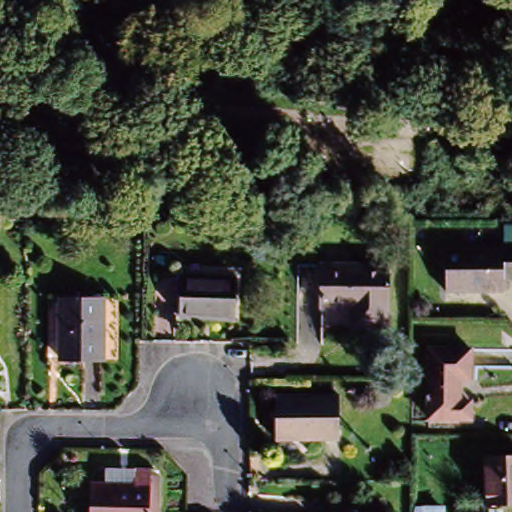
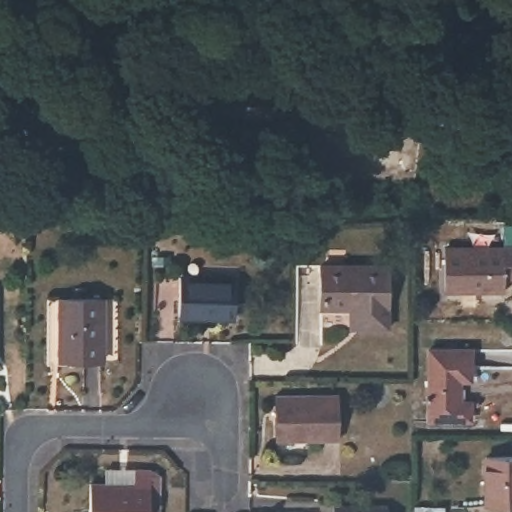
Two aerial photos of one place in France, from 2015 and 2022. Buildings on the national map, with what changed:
unchanged [(512,276),(496,276),(495,290),(440,289),(439,247),(496,247),(512,248),(512,276)]
unchanged [(387,327),(360,327),(360,310),(320,310),(321,266),(387,266),(387,327)]
unchanged [(235,276),(235,314),(180,313),(180,276),(235,276)]
unchanged [(95,297),(95,360),(55,360),(55,296),(95,297)]
unchanged [(469,420),(427,419),(427,405),(427,352),(470,352),(469,353),(469,380),(455,379),(455,405),(469,405),(469,420)]
unchanged [(345,439),(283,438),(272,438),(272,395),(282,395),(345,396),(345,439)]
unchanged [(482,457),(512,458),(512,502),(481,502),(482,457)]
unchanged [(87,487),(106,486),(105,471),(134,471),(149,471),(149,477),(149,512),(86,512),(87,487)]
unchanged [(389,512),(329,512),(329,507),(389,508),(389,512)]

